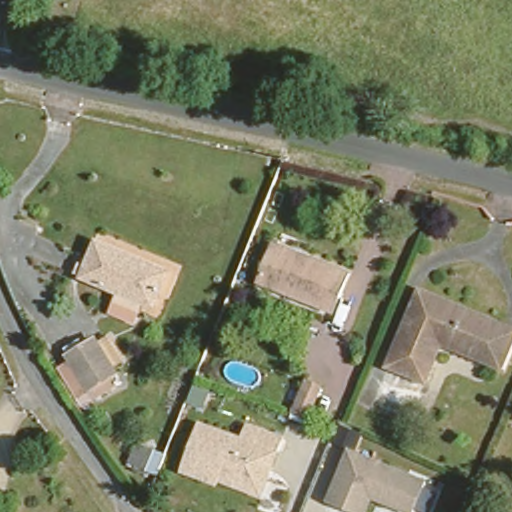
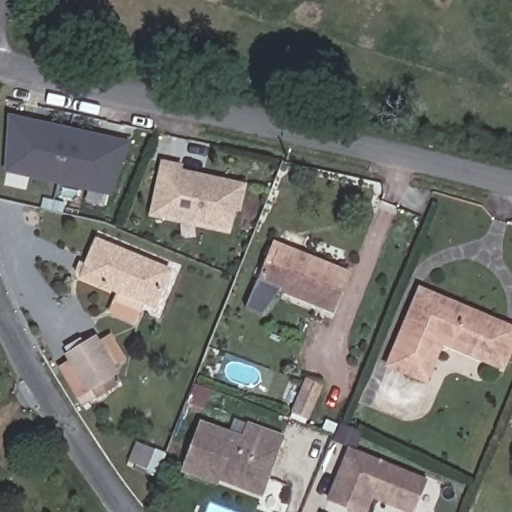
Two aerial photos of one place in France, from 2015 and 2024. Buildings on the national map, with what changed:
new [(15,118),(45,125),(96,136),(127,144),(122,160),(117,182),(5,157),(11,135),(15,118)]
new [(183,164),(182,170),(248,185),(242,211),(236,210),(231,235),(149,216),(162,159),(183,164)]
unchanged [(271,247),(275,239),(301,250),(343,268),(327,306),(259,277),(271,247)]
unchanged [(151,301),(80,275),(92,242),(162,268),(151,301)]
unchanged [(423,371),(390,357),(418,285),(512,322),(512,327),(498,362),(482,356),(437,338),(423,371)]
unchanged [(78,408),(51,367),(72,355),(69,350),(96,335),(125,378),(78,408)]
unchanged [(295,415),(307,381),(323,387),(310,420),(295,415)]
unchanged [(218,481),(184,467),(202,420),(245,437),(250,423),(284,436),(278,451),(261,497),(218,481)]
unchanged [(403,512),(375,501),(369,512),(348,512),(325,502),(347,447),(429,480),(418,512),(403,512)]

